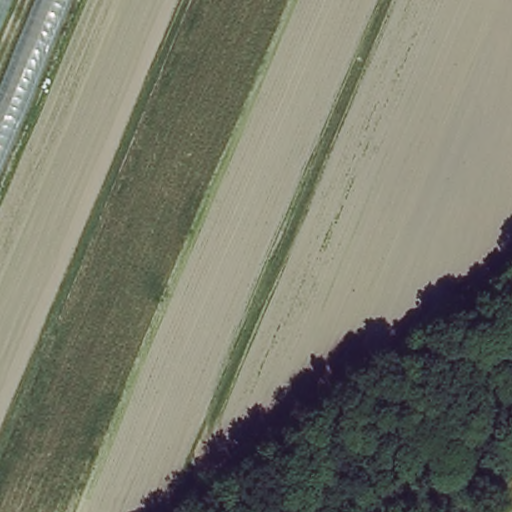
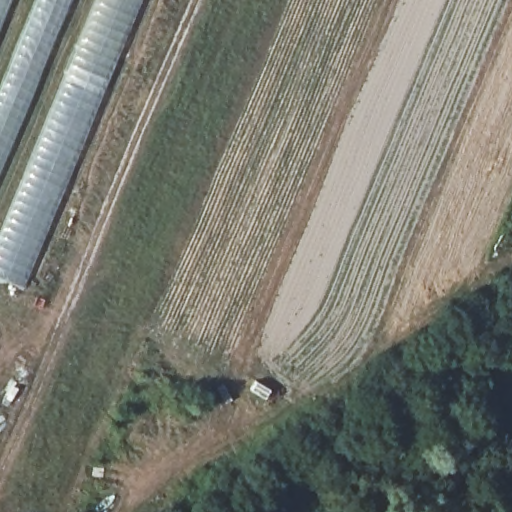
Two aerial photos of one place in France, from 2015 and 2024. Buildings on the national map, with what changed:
unchanged [(0,0),(72,0),(0,172),(0,0)]
new [(145,0),(25,291),(0,281),(0,229),(94,0),(145,0)]

